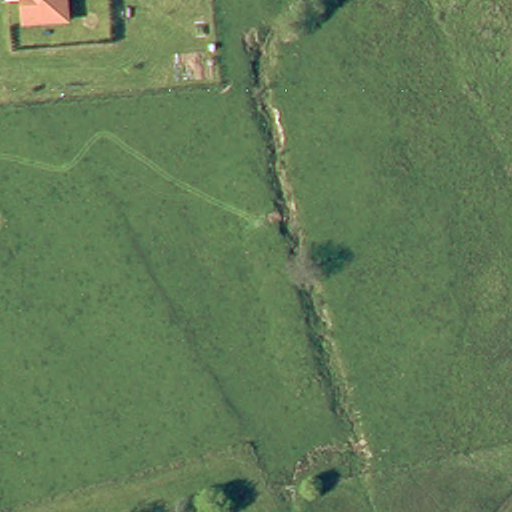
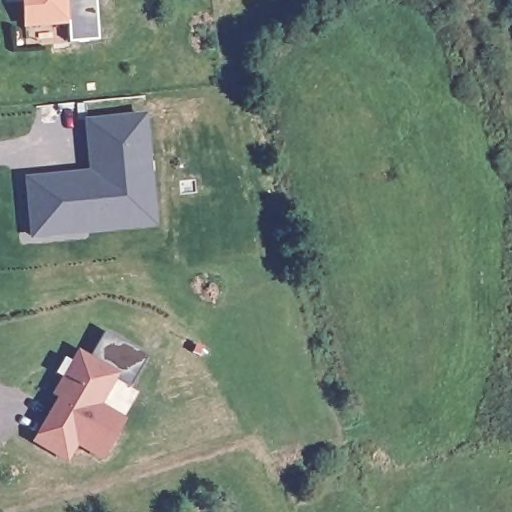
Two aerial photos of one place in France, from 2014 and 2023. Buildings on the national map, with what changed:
unchanged [(78,0),(79,12),(35,14),(34,0),(78,0)]
new [(83,118),(145,112),(156,227),(29,239),(24,175),(86,170),(83,118)]
new [(147,355),(130,386),(116,378),(101,404),(125,418),(101,461),(77,447),(67,463),(30,442),(55,397),(50,394),(77,348),(90,356),(103,332),(147,355)]

